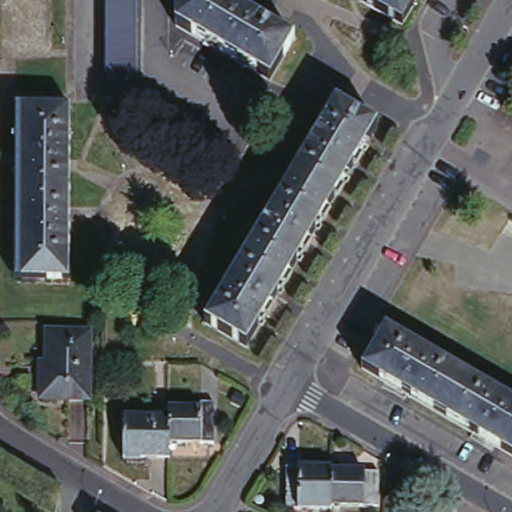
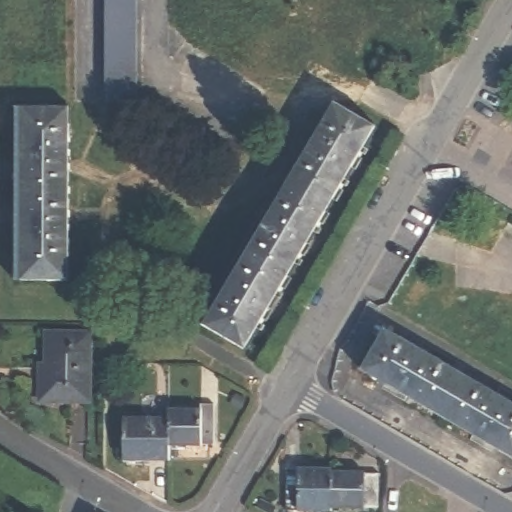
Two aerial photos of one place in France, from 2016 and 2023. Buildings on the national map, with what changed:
unchanged [(105,100),(104,0),(135,0),(135,100),(105,100)]
demolished [(246,65),(177,24),(178,0),(232,0),(297,38),(273,80),(246,65)]
demolished [(416,0),(402,25),(360,0),(416,0)]
unchanged [(62,279),(16,279),(17,199),(17,151),(17,105),(63,105),(62,279)]
unchanged [(335,106),(377,130),(355,167),(315,237),(272,309),(247,352),(206,329),(335,106)]
unchanged [(512,404),(512,460),(487,445),(390,388),(363,372),(387,331),(512,404)]
unchanged [(90,401),(41,400),(41,374),(46,374),(47,332),(90,333),(90,401)]
unchanged [(168,407),(200,408),(200,402),(215,403),(215,444),(170,444),(171,419),(167,419),(168,407)]
unchanged [(167,419),(171,419),(170,444),(170,459),(125,459),(125,418),(167,419)]
unchanged [(343,509),(296,509),(297,467),(343,468),(343,472),(343,506),(343,509)]
unchanged [(389,472),(388,506),(343,506),(343,472),(389,472)]

